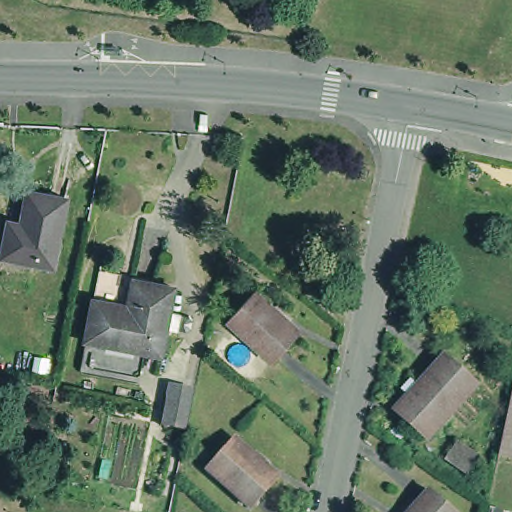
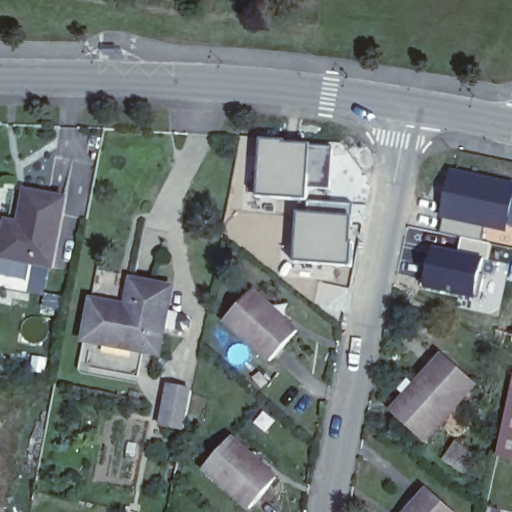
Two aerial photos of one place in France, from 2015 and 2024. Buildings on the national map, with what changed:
new [(260,138),(335,144),(331,197),(327,197),(308,195),(307,199),(255,194),(260,138)]
new [(490,175),(512,182),(512,228),(507,227),(506,233),(485,229),(484,231),(477,229),(475,237),(460,235),(439,231),(441,219),(437,218),(447,167),(490,175)]
unchanged [(70,194),(57,261),(5,253),(10,226),(12,215),(25,217),(30,186),(70,194)]
new [(297,211),(307,212),(307,199),(327,197),(331,197),(338,198),(338,199),(353,200),(352,267),(294,261),(297,211)]
new [(427,245),(457,250),(460,235),(475,237),(492,240),(488,257),(485,257),(475,299),(420,288),(427,245)]
unchanged [(86,336),(94,295),(107,297),(129,301),(133,280),(135,273),(151,277),(175,282),(170,307),(190,310),(195,317),(194,324),(187,329),(167,325),(162,351),(120,342),(100,338),(86,336)]
unchanged [(273,357),(230,317),(256,288),(275,304),(279,299),(290,309),(285,313),(300,328),(273,357)]
unchanged [(478,381),(428,438),(395,409),(410,392),(404,387),(413,377),(419,382),(446,352),(478,381)]
unchanged [(193,389),(185,428),(162,424),(170,385),(193,389)]
unchanged [(512,392),(512,454),(499,451),(512,392)]
unchanged [(247,504),(203,464),(230,433),(250,451),(254,446),(263,454),(259,460),(275,474),(247,504)]
unchanged [(413,492),(418,496),(430,482),(461,509),(459,512),(404,512),(408,507),(403,503),(413,492)]

